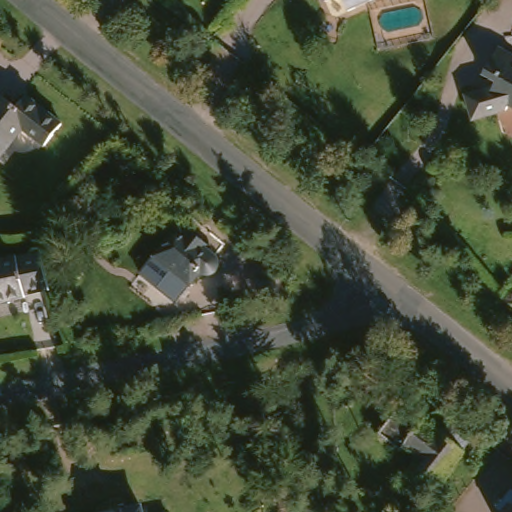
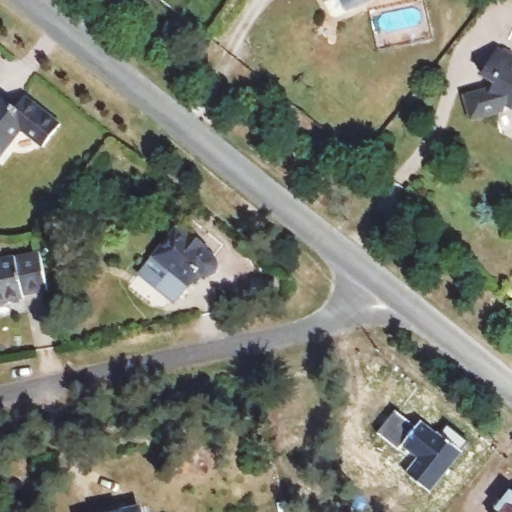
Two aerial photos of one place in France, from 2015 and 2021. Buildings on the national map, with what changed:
unchanged [(475,122),(467,102),(486,93),(472,83),(502,48),(512,54),(512,112),(507,109),(475,122)]
unchanged [(16,106),(24,96),(58,124),(42,144),(20,127),(0,152),(0,95),(16,106)]
unchanged [(180,225),(207,246),(204,249),(215,258),(217,265),(216,271),(211,275),(199,271),(187,285),(184,282),(175,293),(151,273),(160,262),(154,257),(180,225)]
unchanged [(0,300),(0,257),(31,250),(36,249),(51,288),(47,289),(0,300)]
unchanged [(437,435),(440,433),(462,451),(431,490),(428,490),(406,473),(418,458),(402,445),(398,450),(377,433),(397,410),(416,425),(420,420),(437,435)]
unchanged [(502,508),(497,504),(512,486),(512,512),(500,512),(502,508)]
unchanged [(135,505),(136,512),(99,512),(135,505)]

